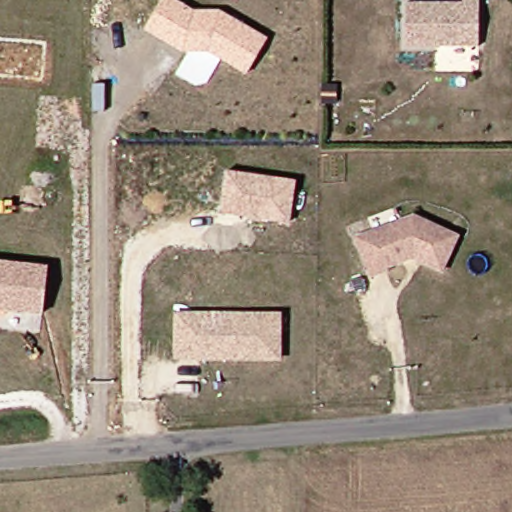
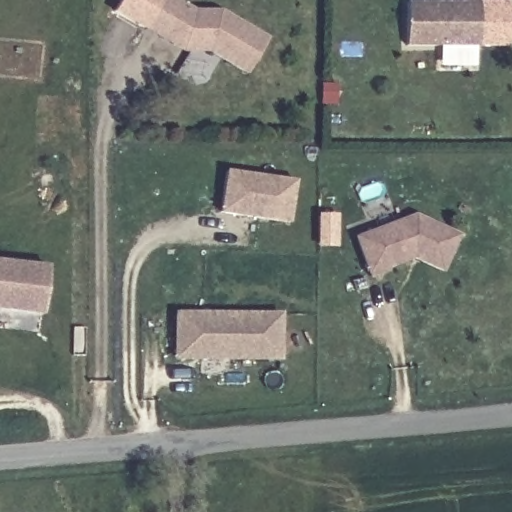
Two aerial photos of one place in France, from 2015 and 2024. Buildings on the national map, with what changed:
new [(115,9),(120,0),(161,0),(146,28),(115,9)]
unchanged [(248,74),(207,50),(186,52),(146,28),(161,0),(178,0),(200,11),(220,9),(269,37),(248,74)]
unchanged [(464,1),(464,0),(480,0),(480,45),(406,44),(406,0),(464,1)]
new [(480,0),(511,0),(511,45),(480,45),(480,0)]
unchanged [(296,180),(290,222),(220,211),(226,170),(296,180)]
unchanged [(459,233),(443,268),(413,255),(387,265),(388,268),(371,274),(355,236),(375,228),(369,215),(388,208),(393,221),(415,213),(459,233)]
unchanged [(0,308),(0,261),(49,265),(44,312),(0,308)]
unchanged [(283,310),(281,361),(174,361),(175,310),(283,310)]

